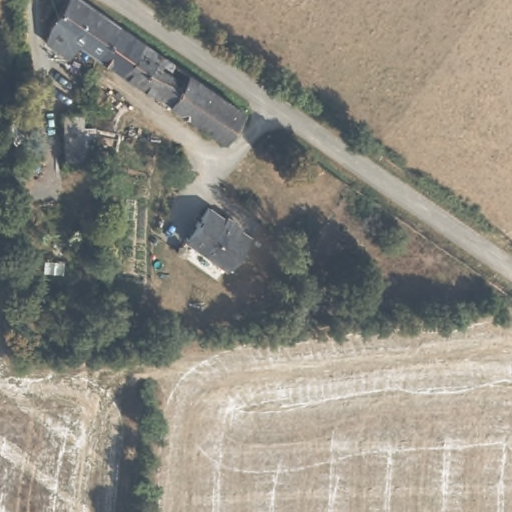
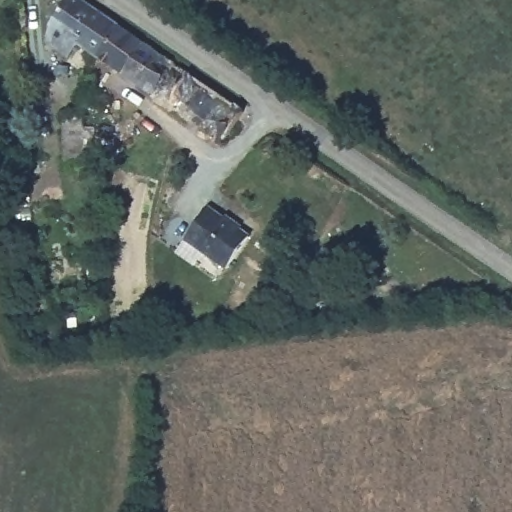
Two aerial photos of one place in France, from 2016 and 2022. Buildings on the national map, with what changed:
unchanged [(76,40),(66,52),(45,37),(50,19),(64,0),(87,0),(119,22),(98,53),(76,40)]
unchanged [(155,91),(142,82),(98,53),(119,22),(161,51),(175,61),(242,107),(223,135),(155,91)]
unchanged [(66,167),(64,122),(82,122),(84,167),(66,167)]
unchanged [(150,195),(152,172),(141,172),(144,136),(177,138),(173,197),(150,195)]
unchanged [(204,204),(245,232),(224,265),(182,237),(204,204)]

